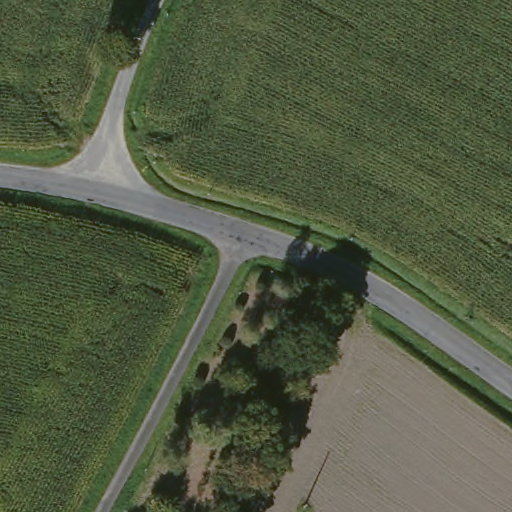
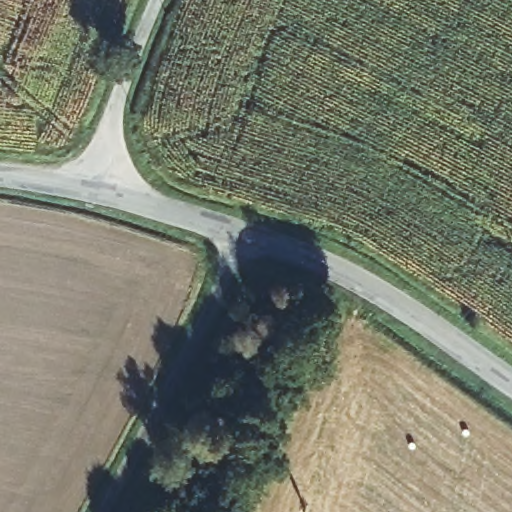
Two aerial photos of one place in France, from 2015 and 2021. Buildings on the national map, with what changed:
[]

